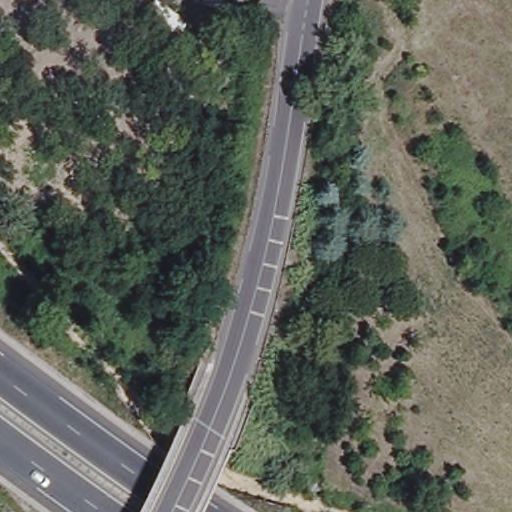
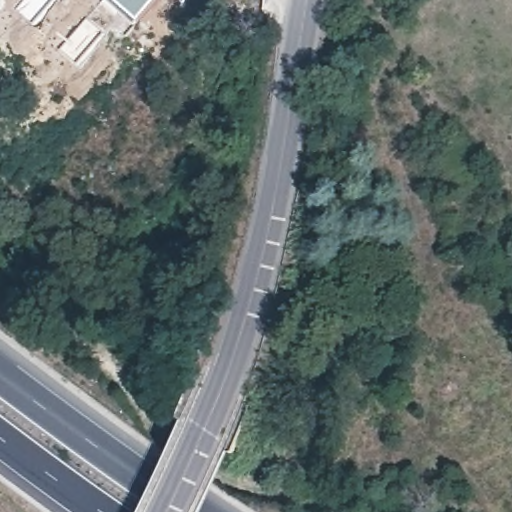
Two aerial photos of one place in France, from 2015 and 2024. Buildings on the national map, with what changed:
new [(112,0),(158,0),(139,22),(112,0)]

